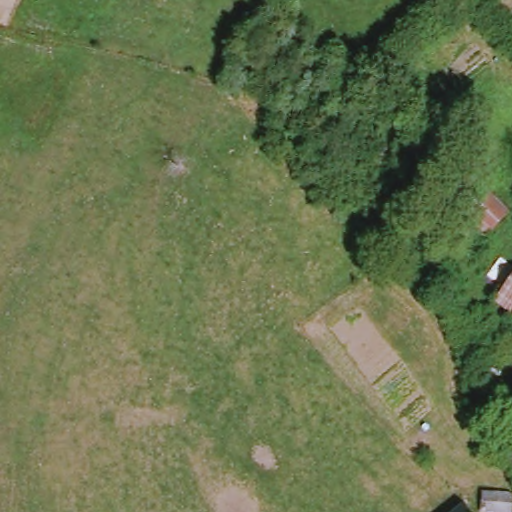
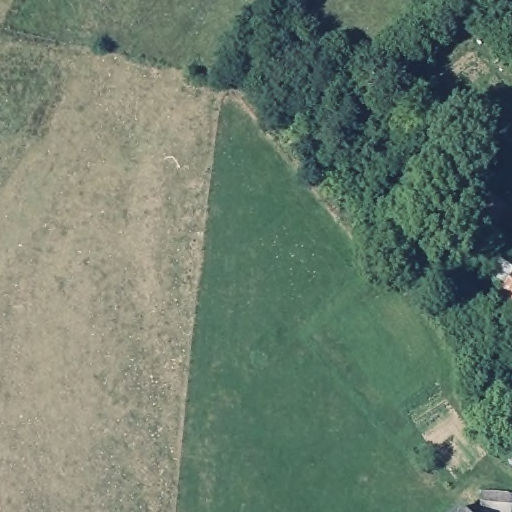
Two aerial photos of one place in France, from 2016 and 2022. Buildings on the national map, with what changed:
unchanged [(504,209),(482,234),(437,197),(457,169),(504,209)]
unchanged [(495,299),(512,279),(512,312),(495,299)]
unchanged [(474,368),(475,365),(479,362),(482,360),(487,360),(492,361),(498,364),(504,353),(512,357),(512,380),(507,392),(471,376),(474,368)]
unchanged [(498,451),(502,448),(500,444),(500,440),(500,436),(504,434),(508,434),(511,434),(512,436),(512,466),(498,451)]
unchanged [(507,501),(504,512),(477,512),(482,495),(507,501)]
unchanged [(462,512),(458,512),(460,511),(462,512)]

